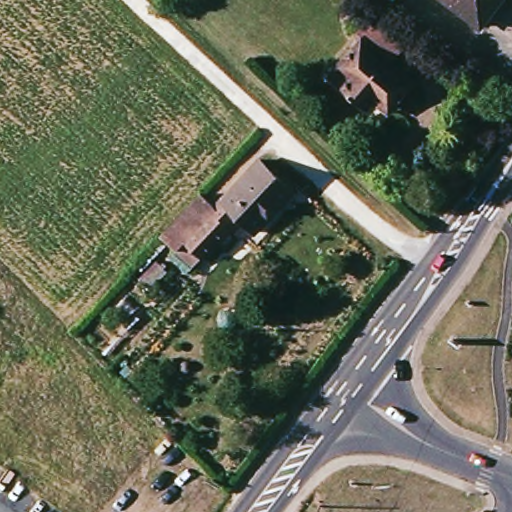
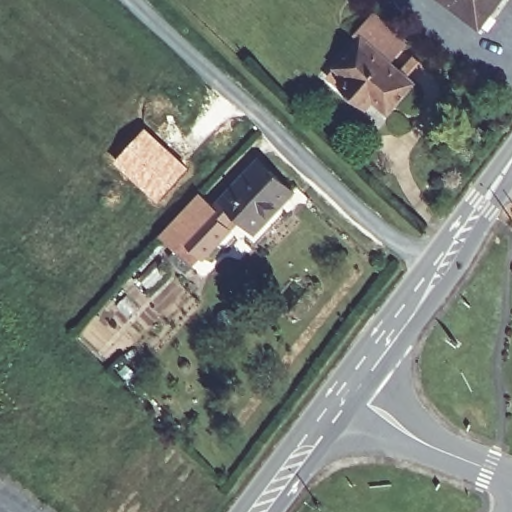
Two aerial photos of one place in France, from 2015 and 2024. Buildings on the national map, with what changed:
unchanged [(451,0),(503,0),(483,26),(451,0)]
unchanged [(370,43),(362,37),(377,19),(413,47),(399,66),(370,43)]
unchanged [(387,106),(380,115),(371,108),(340,83),(370,43),(399,66),(425,86),(407,107),(400,116),(387,106)]
new [(145,126),(188,169),(157,201),(114,159),(145,126)]
unchanged [(215,258),(211,256),(199,268),(164,236),(203,192),(222,209),(265,160),(299,190),(262,230),(250,220),(215,258)]

